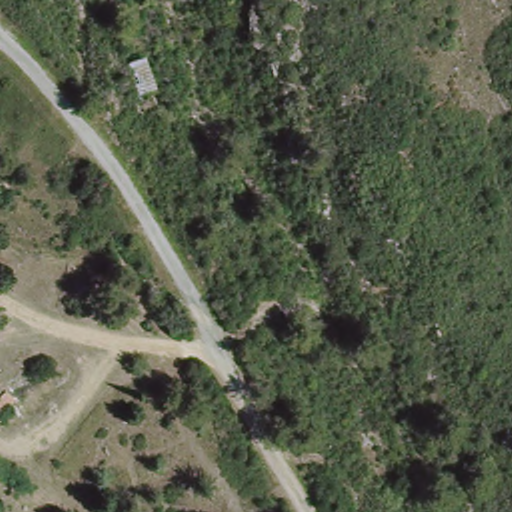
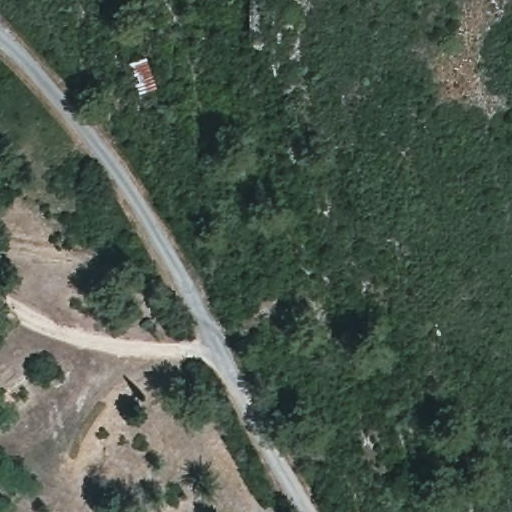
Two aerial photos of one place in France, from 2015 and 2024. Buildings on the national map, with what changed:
unchanged [(3,385),(15,396),(0,411),(0,388),(3,385)]

